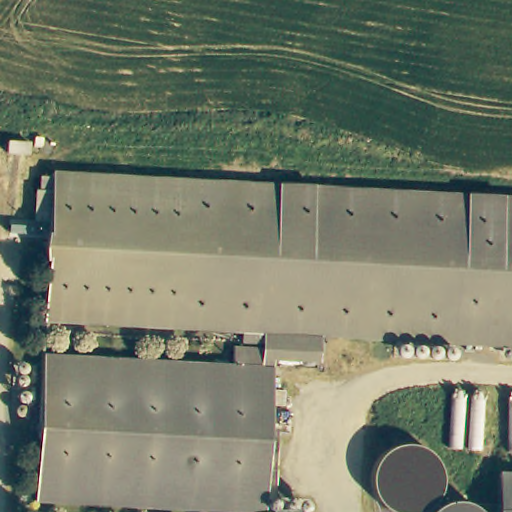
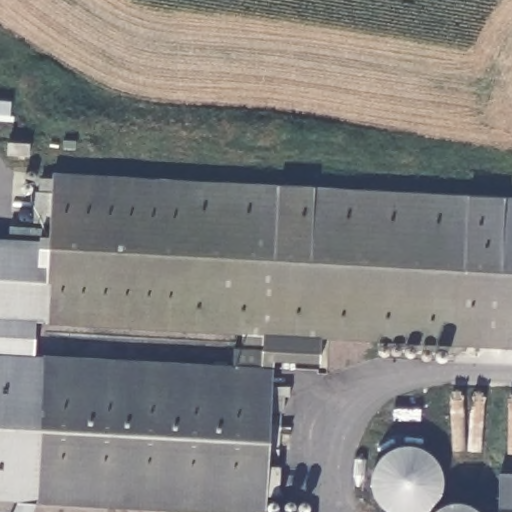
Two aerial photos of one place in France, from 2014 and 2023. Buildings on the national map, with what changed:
unchanged [(30,157),(29,169),(8,168),(9,156),(30,157)]
unchanged [(44,359),(259,370),(261,335),(45,325),(50,230),(35,230),(35,229),(37,199),(41,199),(42,186),(52,186),(53,182),(512,203),(512,348),(318,338),(317,362),(270,360),(266,440),(244,438),(222,512),(202,512),(36,503),(44,359)]
new [(36,321),(34,355),(44,355),(44,359),(36,503),(32,512),(13,512),(17,501),(0,500),(0,239),(40,241),(40,235),(50,236),(45,321),(36,321)]
unchanged [(244,438),(266,440),(263,512),(222,512),(244,438)]
unchanged [(497,481),(512,482),(512,512),(496,512),(497,481)]

